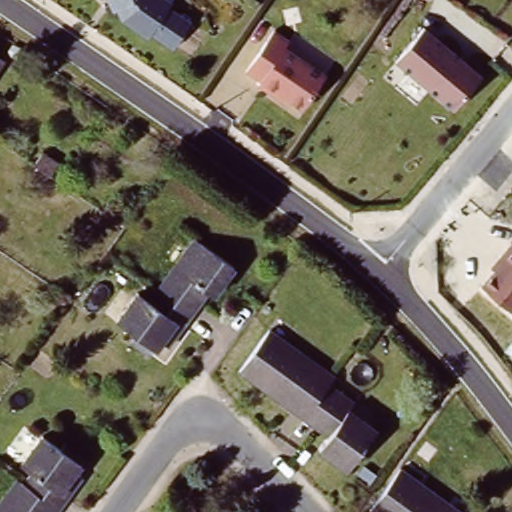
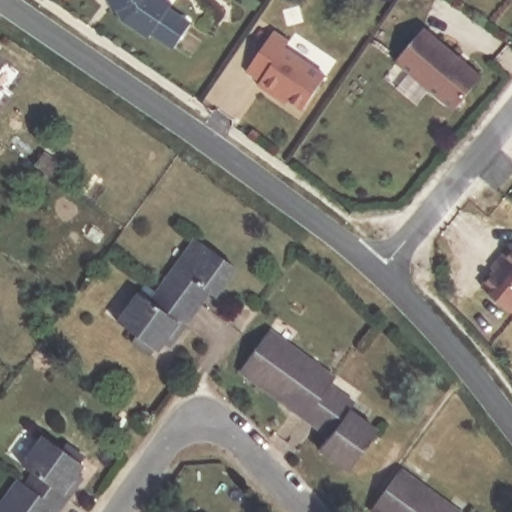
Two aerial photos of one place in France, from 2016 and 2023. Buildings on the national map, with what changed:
unchanged [(172,7),(194,23),(176,48),(154,32),(151,36),(126,17),(124,20),(118,6),(114,8),(110,0),(169,0),(175,4),(172,7)]
unchanged [(298,34),(294,40),(329,67),(298,105),(279,90),(272,96),(260,83),(261,82),(249,68),(284,23),(298,34)]
unchanged [(425,24),(484,75),(453,110),(395,61),(425,24)]
unchanged [(34,44),(27,54),(15,45),(21,36),(34,44)]
unchanged [(11,56),(0,72),(0,48),(11,56)]
unchanged [(52,145),(68,156),(59,170),(43,158),(52,145)]
unchanged [(166,284),(202,233),(242,262),(222,289),(216,285),(202,275),(194,285),(209,295),(199,309),(166,284)]
unchanged [(512,246),(512,313),(477,288),(512,246)]
unchanged [(139,335),(144,328),(126,316),(146,287),(158,295),(166,284),(199,309),(193,318),(177,339),(171,335),(165,343),(163,341),(158,348),(139,335)]
unchanged [(337,378),(313,411),(301,402),(304,398),(277,377),(273,383),(247,364),(276,326),(291,338),(294,335),(343,370),(337,378)]
unchanged [(356,462),(328,442),(337,429),(342,421),(330,413),(325,420),(313,411),(337,378),(362,396),(356,404),(384,424),(356,462)]
unchanged [(91,468),(75,489),(67,500),(33,475),(41,463),(30,455),(50,427),(69,441),(74,434),(93,448),(88,454),(90,455),(84,463),(91,468)]
unchanged [(51,512),(0,512),(0,505),(26,470),(33,475),(67,500),(60,510),(58,512),(57,512),(53,508),(51,512)]
unchanged [(399,473),(450,509),(447,512),(371,512),(399,473)]
unchanged [(214,505),(222,512),(209,512),(214,505)]
unchanged [(207,511),(208,512),(206,512),(207,511)]

